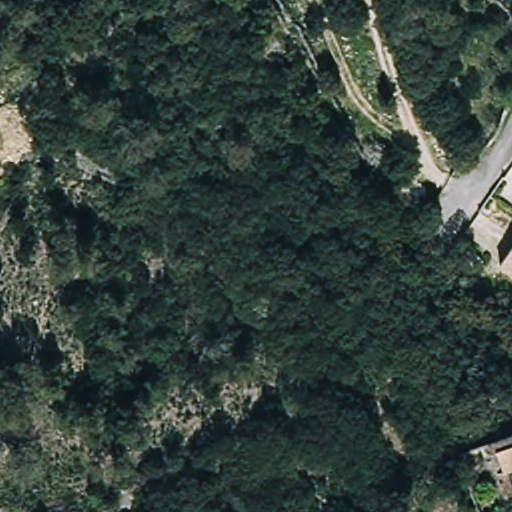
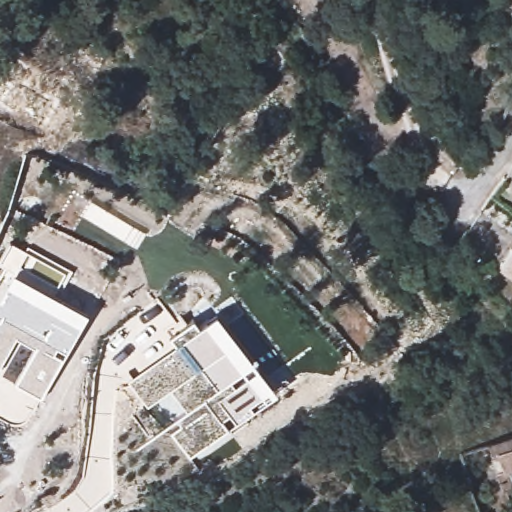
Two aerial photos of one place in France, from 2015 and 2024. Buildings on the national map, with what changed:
unchanged [(512,247),(512,277),(497,267),(512,247)]
new [(43,399),(16,385),(36,348),(17,338),(0,367),(0,298),(14,272),(89,312),(43,399)]
new [(191,459),(173,435),(181,428),(177,422),(188,413),(171,391),(147,408),(127,382),(217,313),(278,393),(191,459)]
unchanged [(492,473),(499,471),(488,442),(512,434),(512,489),(500,493),(492,473)]

